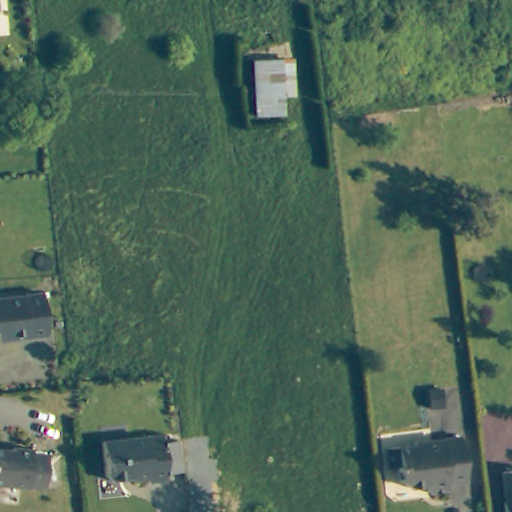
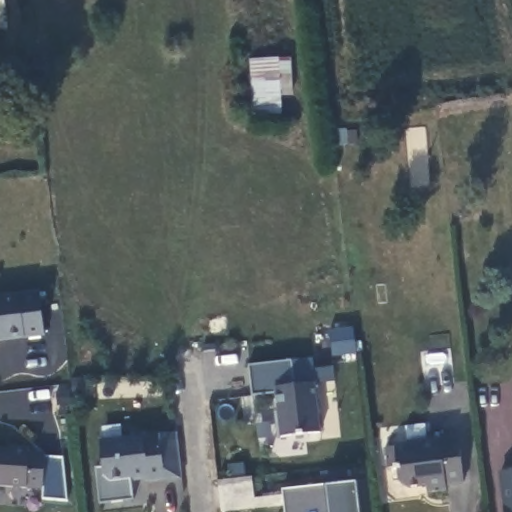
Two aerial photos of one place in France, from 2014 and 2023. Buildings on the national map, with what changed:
unchanged [(294,99),(280,100),(282,117),(253,119),(248,61),(290,58),(294,99)]
unchanged [(41,339),(0,343),(0,300),(36,295),(41,339)]
new [(294,384),(314,382),(320,433),(279,437),(274,393),(253,396),(249,365),(292,360),(294,384)]
unchanged [(413,445),(413,439),(461,436),(463,481),(447,482),(448,490),(430,490),(429,482),(411,483),(400,476),(398,462),(389,462),(388,446),(413,445)]
unchanged [(158,442),(179,440),(182,473),(161,475),(162,484),(148,484),(148,481),(130,481),(129,477),(106,479),(101,472),(99,443),(157,437),(158,442)]
unchanged [(8,449),(26,449),(26,451),(42,451),(39,490),(0,488),(0,451),(7,451),(8,449)]
new [(360,512),(286,512),(283,490),(321,485),(322,471),(345,470),(344,483),(356,482),(360,512)]
unchanged [(506,471),(512,471),(512,512),(508,512),(505,501),(507,500),(506,471)]
new [(253,476),(257,508),(222,512),(218,480),(253,476)]

